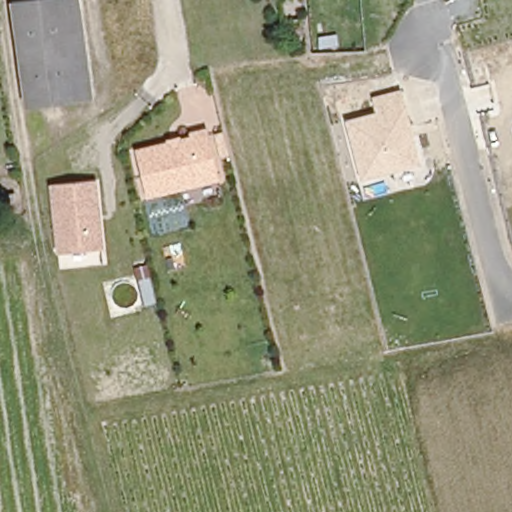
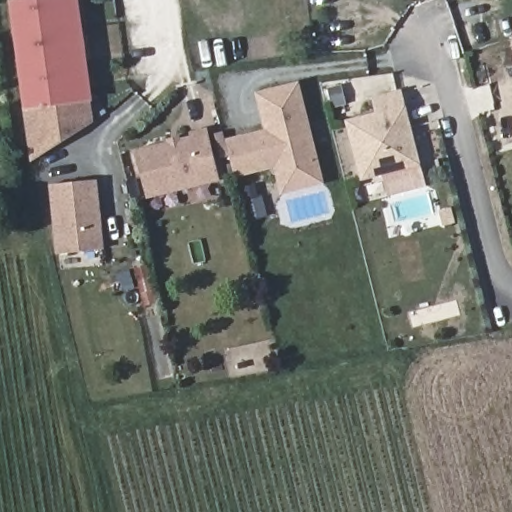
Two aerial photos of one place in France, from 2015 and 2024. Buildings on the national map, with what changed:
unchanged [(26,106),(11,0),(67,0),(81,100),(26,106)]
unchanged [(95,98),(81,100),(67,0),(82,0),(95,98)]
new [(256,92),(301,82),(325,184),(281,196),(275,169),(236,178),(228,139),(265,130),(256,92)]
unchanged [(373,97),(403,91),(423,166),(361,180),(346,119),(376,113),(373,97)]
new [(32,160),(26,106),(81,100),(95,98),(95,121),(32,160)]
unchanged [(149,200),(137,150),(210,131),(221,180),(149,200)]
unchanged [(105,249),(57,253),(51,185),(98,180),(105,249)]

